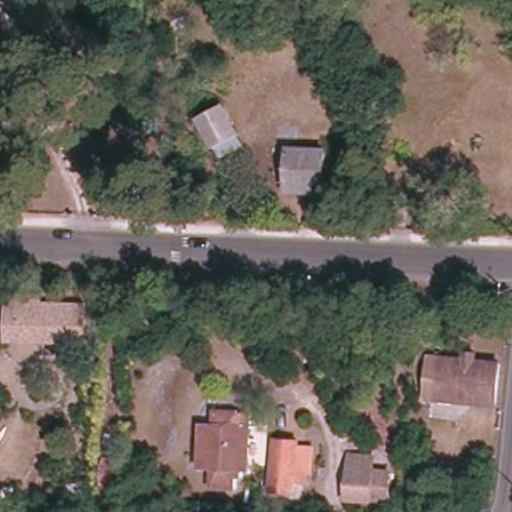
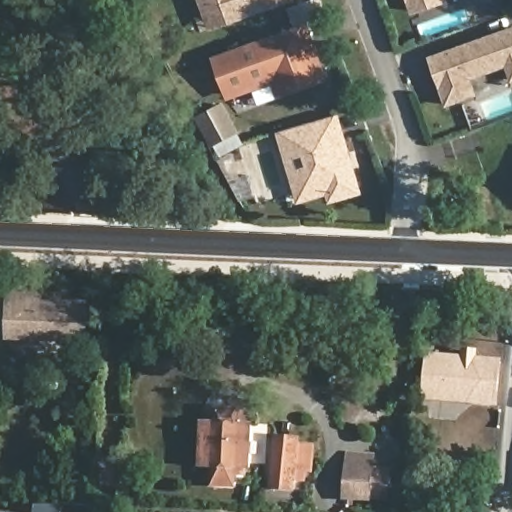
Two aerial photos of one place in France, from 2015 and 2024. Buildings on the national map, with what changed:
new [(199,0),(296,0),(209,30),(199,0)]
new [(412,14),(407,0),(449,0),(449,1),(412,14)]
new [(272,83),(225,99),(211,57),(308,21),(328,80),(277,98),(272,83)]
new [(505,66),(472,78),(478,94),(445,106),(428,57),(512,26),(512,81),(511,81),(505,66)]
unchanged [(202,117),(224,105),(238,130),(216,142),(202,117)]
new [(298,203),(277,132),(340,113),(364,194),(329,203),(326,194),(298,203)]
demolished [(287,186),(288,148),(325,149),(325,186),(287,186)]
unchanged [(71,339),(0,336),(0,294),(28,295),(28,301),(73,303),(71,339)]
unchanged [(427,401),(429,358),(454,360),(455,353),(465,354),(465,360),(490,362),(488,404),(427,401)]
unchanged [(215,410),(236,411),(236,426),(248,426),(246,467),(240,466),(239,475),(233,474),(232,484),(211,484),(212,465),(210,465),(200,465),(200,424),(210,424),(214,424),(215,410)]
unchanged [(297,439),(298,446),(309,446),(312,447),(311,471),(308,471),(296,470),(294,489),(274,488),(272,488),(274,439),(277,439),(297,439)]
unchanged [(393,472),(390,503),(371,506),(341,503),(344,456),(376,456),(374,472),(393,472)]
unchanged [(102,463),(101,479),(93,478),(93,462),(102,463)]

